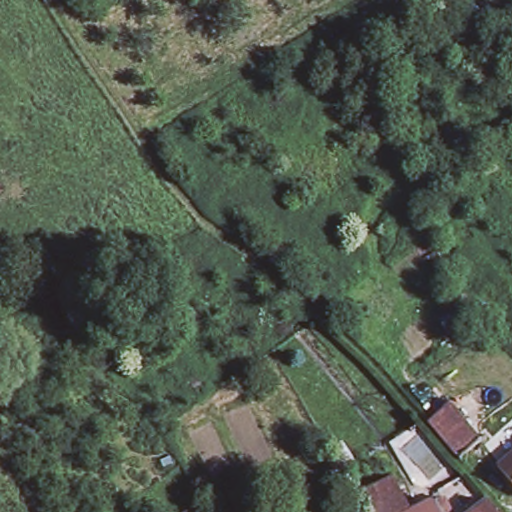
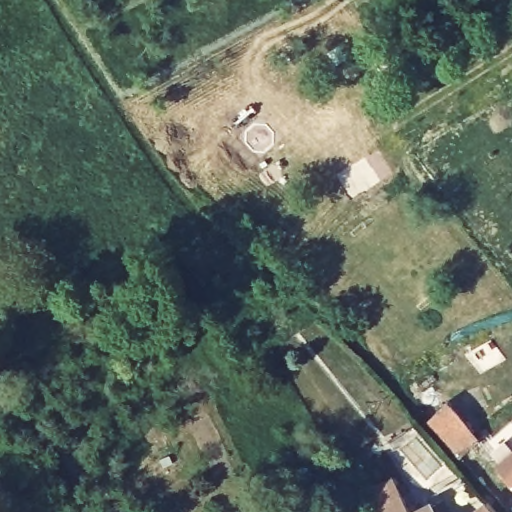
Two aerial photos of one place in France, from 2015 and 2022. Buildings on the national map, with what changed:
unchanged [(450,398),(480,433),(458,452),(428,417),(450,398)]
unchanged [(512,453),(512,487),(495,467),(512,453)]
unchanged [(365,492),(361,480),(374,476),(377,486),(393,478),(399,489),(404,486),(408,495),(403,497),(409,512),(370,512),(365,492)]
unchanged [(432,502),(437,512),(413,512),(432,502)]
unchanged [(495,512),(474,512),(487,503),(495,512)]

